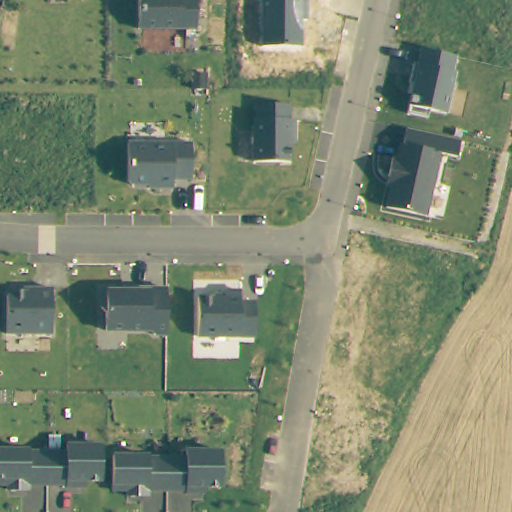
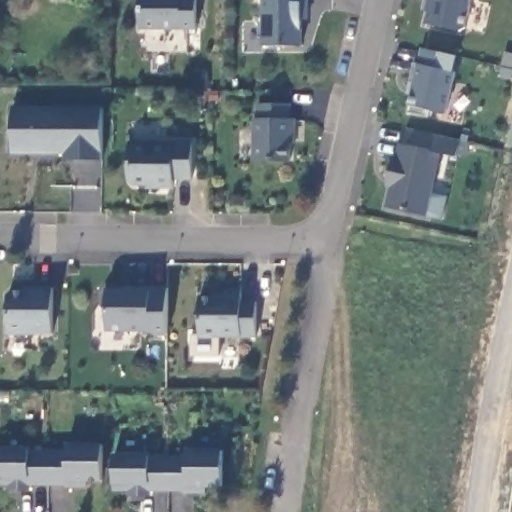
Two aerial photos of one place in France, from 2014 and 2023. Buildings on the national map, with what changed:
unchanged [(197,31),(140,30),(140,0),(197,0),(197,31)]
unchanged [(302,1),(306,2),(306,21),(302,21),(302,47),(262,47),(263,0),(302,0),(302,1)]
new [(431,1),(429,0),(473,0),(466,27),(462,31),(427,23),(431,1)]
unchanged [(456,57),(453,71),(456,72),(447,115),(408,106),(421,49),(456,57)]
unchanged [(290,118),(295,119),(295,146),(291,145),(290,162),(254,162),(255,119),(256,119),(257,104),(291,105),(290,118)]
new [(102,152),(102,161),(64,161),(64,155),(12,154),(12,106),(102,107),(102,152)]
unchanged [(456,157),(440,154),(426,217),(384,207),(400,144),(402,145),(405,129),(460,142),(456,157)]
unchanged [(191,180),(172,180),(173,190),(144,189),(144,186),(128,186),(127,142),(191,142),(191,180)]
unchanged [(53,336),(8,335),(9,292),(22,292),(23,288),(52,288),(53,336)]
unchanged [(167,337),(154,337),(153,333),(107,332),(107,288),(167,290),(167,337)]
unchanged [(255,337),(199,337),(199,296),(222,295),(222,290),(241,291),(242,302),(255,302),(255,337)]
unchanged [(66,443),(104,445),(103,483),(86,483),(86,488),(31,487),(30,492),(8,492),(8,487),(0,487),(0,449),(66,450),(66,443)]
unchanged [(222,488),(206,488),(206,493),(150,492),(150,497),(129,497),(129,492),(112,492),(113,456),(186,456),(185,450),(222,451),(222,488)]

